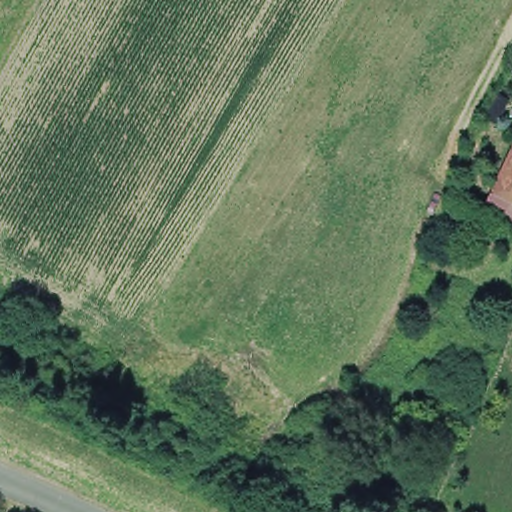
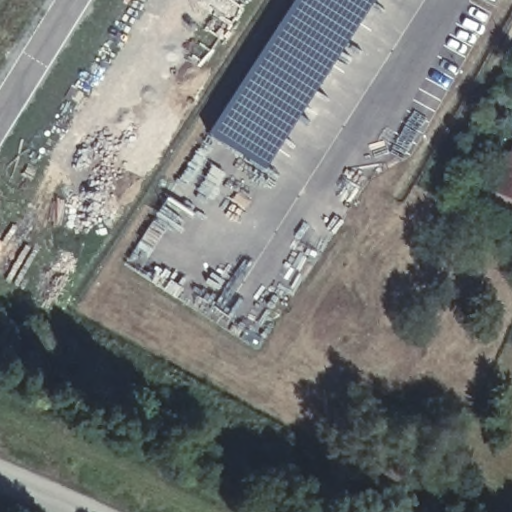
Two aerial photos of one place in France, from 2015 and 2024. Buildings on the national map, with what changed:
new [(292,0),(377,0),(265,172),(206,134),(292,0)]
unchanged [(510,188),(493,179),(512,138),(512,211),(502,206),(510,188)]

